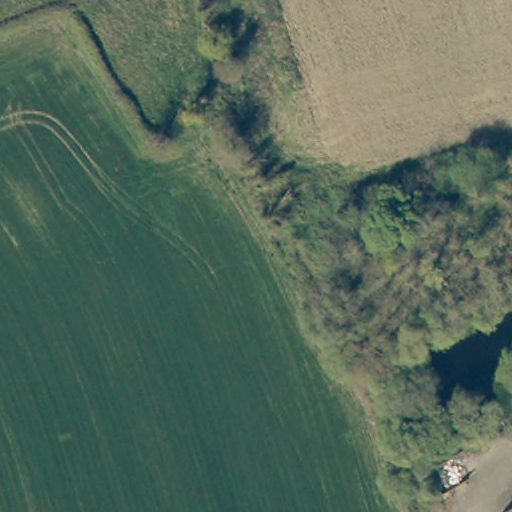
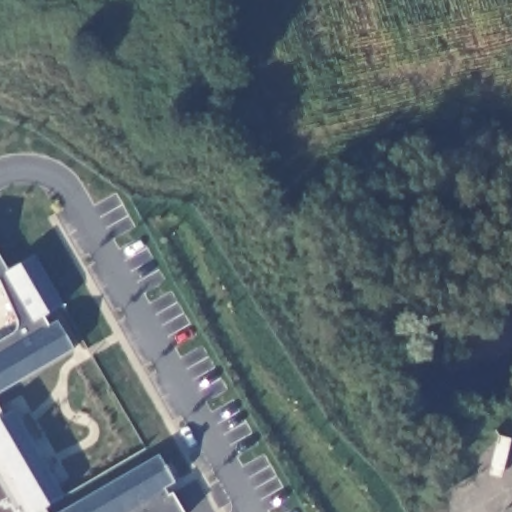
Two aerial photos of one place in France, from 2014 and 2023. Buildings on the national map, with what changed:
new [(34,256),(61,304),(43,315),(47,322),(55,318),(71,349),(0,390),(0,260),(7,270),(34,256)]
new [(12,410),(63,497),(43,506),(46,512),(0,512),(0,416),(12,410)]
new [(173,482),(168,485),(180,512),(60,512),(158,455),(173,482)]
unchanged [(512,512),(502,512),(512,507),(512,512)]

